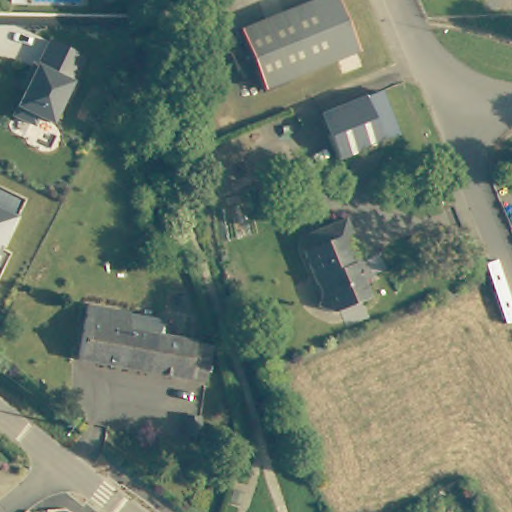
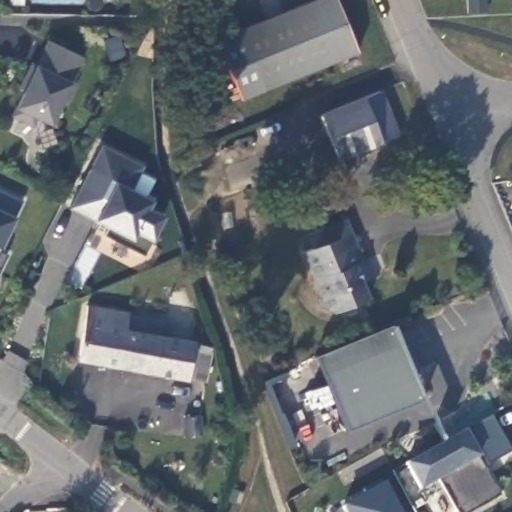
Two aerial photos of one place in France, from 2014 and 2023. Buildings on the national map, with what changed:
unchanged [(312,0),(335,0),(356,52),(263,90),(238,30),(312,0)]
new [(238,30),(263,90),(240,99),(215,40),(238,30)]
unchanged [(38,119),(34,126),(11,115),(17,107),(39,59),(47,43),(85,60),(75,83),(53,124),(38,119)]
unchanged [(339,159),(321,115),(380,91),(398,134),(339,159)]
new [(102,144),(144,164),(133,188),(154,198),(150,207),(164,214),(152,239),(144,255),(103,235),(108,225),(96,219),(95,221),(69,208),(102,144)]
unchanged [(20,200),(14,217),(17,218),(2,252),(7,254),(0,269),(0,190),(20,200)]
unchanged [(306,234),(346,218),(357,246),(330,257),(324,242),(311,248),(306,234)]
unchanged [(370,278),(363,281),(369,298),(334,312),(318,306),(322,296),(304,251),(311,248),(324,242),(330,257),(357,246),(367,270),(370,278)]
unchanged [(127,314),(125,329),(193,342),(193,343),(211,346),(204,381),(186,378),(186,379),(77,359),(87,307),(127,314)]
new [(394,324),(425,399),(346,429),(315,355),(394,324)]
unchanged [(185,436),(184,418),(199,417),(201,435),(185,436)]
new [(478,456),(499,497),(471,512),(457,512),(439,479),(420,489),(407,465),(464,431),(478,456)]

